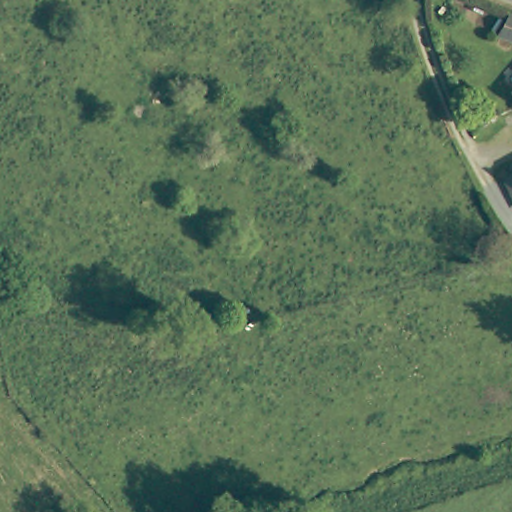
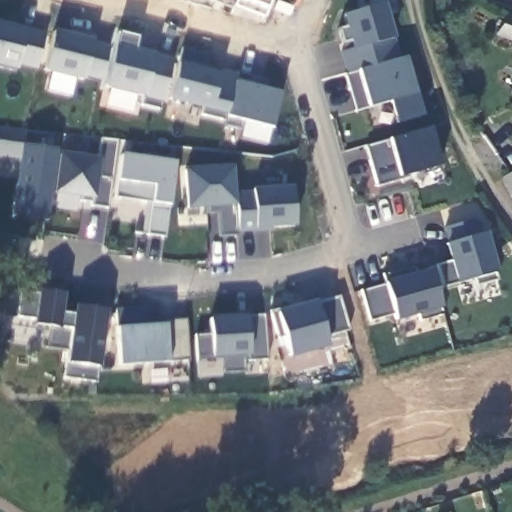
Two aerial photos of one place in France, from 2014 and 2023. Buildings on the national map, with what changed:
new [(397,121),(392,101),(368,108),(354,111),(339,54),(352,50),(341,15),(386,3),(398,59),(407,57),(416,95),(420,116),(397,121)]
unchanged [(495,34),(507,14),(512,16),(512,39),(495,34)]
new [(163,99),(160,109),(141,104),(143,97),(104,88),(106,82),(84,79),(83,82),(16,66),(15,70),(0,67),(0,24),(24,30),(50,36),(52,31),(114,46),(119,34),(135,38),(133,49),(154,54),(179,59),(182,49),(209,56),(204,69),(220,73),(237,75),(234,81),(282,93),(272,128),(163,99)]
new [(53,192),(49,219),(11,214),(15,179),(0,178),(0,128),(59,134),(59,153),(53,192)]
new [(391,140),(429,128),(441,166),(409,175),(410,179),(378,188),(367,146),(391,140)]
new [(169,208),(164,237),(146,234),(150,205),(109,198),(107,209),(90,207),(93,198),(53,192),(59,153),(99,159),(102,139),(121,142),(119,154),(176,163),(169,208)]
new [(270,229),(270,233),(237,233),(234,194),(251,194),(252,189),(292,187),(294,226),(270,229)]
new [(481,234),(486,233),(497,273),(497,279),(477,284),(475,279),(455,284),(443,287),(438,265),(450,262),(446,244),(442,229),(474,219),(481,234)]
new [(420,322),(419,314),(394,320),(393,315),(372,322),(364,292),(385,287),(384,282),(429,269),(439,309),(442,316),(420,322)]
new [(97,369),(96,381),(62,377),(64,362),(66,351),(45,348),(48,327),(31,324),(32,320),(15,318),(19,292),(36,295),(38,290),(62,294),(61,313),(105,320),(97,369)]
new [(325,340),(329,348),(290,359),(277,313),(315,300),(318,305),(338,297),(348,330),(325,340)]
new [(169,364),(119,367),(118,328),(115,310),(144,308),(148,325),(165,324),(185,320),(189,361),(169,364)]
new [(243,362),(243,373),(222,374),(221,358),(210,358),(198,359),(197,338),(209,337),(209,318),(246,317),(262,315),(265,359),(243,362)]

